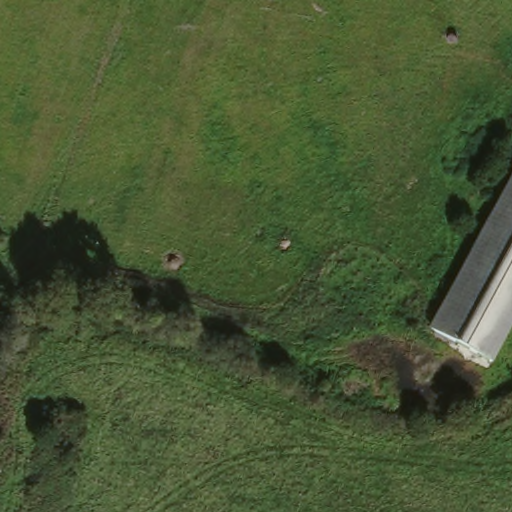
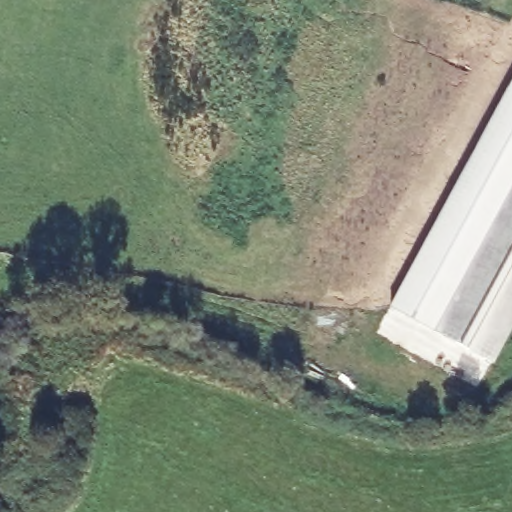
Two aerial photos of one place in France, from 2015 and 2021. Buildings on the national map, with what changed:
new [(512,78),(512,186),(438,332),(390,305),(512,78)]
unchanged [(512,186),(512,333),(497,362),(438,332),(512,186)]

